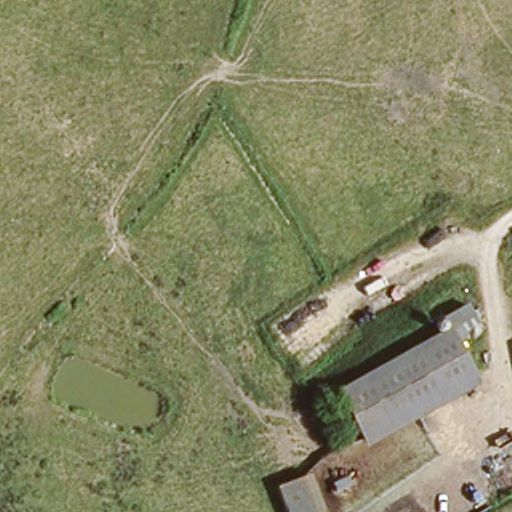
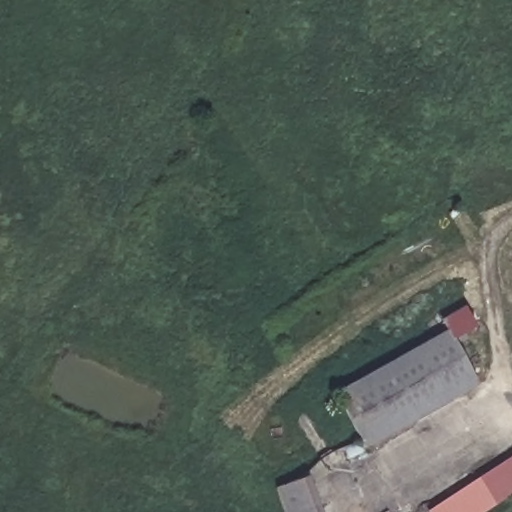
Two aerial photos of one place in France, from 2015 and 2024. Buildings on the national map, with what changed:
unchanged [(361,448),(326,392),(433,333),(427,315),(459,301),(472,324),(450,338),(475,387),(361,448)]
new [(426,512),(512,456),(512,495),(486,512),(426,512)]
unchanged [(281,512),(271,486),(305,470),(321,512),(281,512)]

